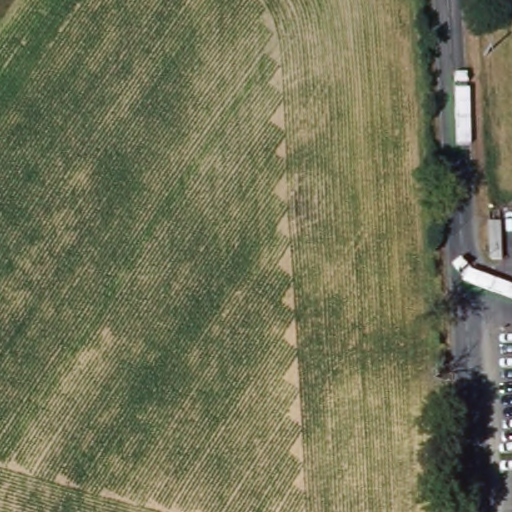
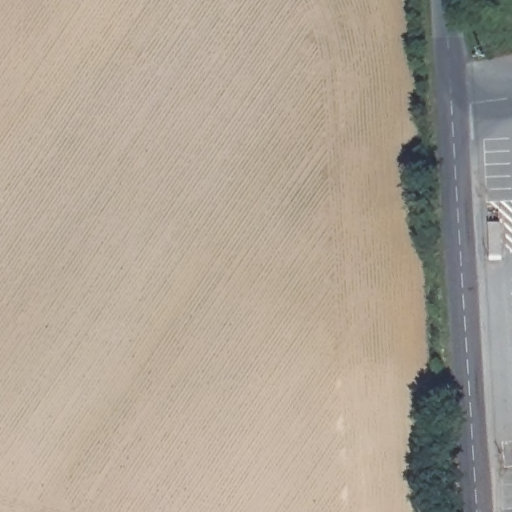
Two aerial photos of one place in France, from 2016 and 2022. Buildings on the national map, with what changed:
unchanged [(500,221),(501,255),(502,260),(493,258),(492,234),(491,222),(500,221)]

